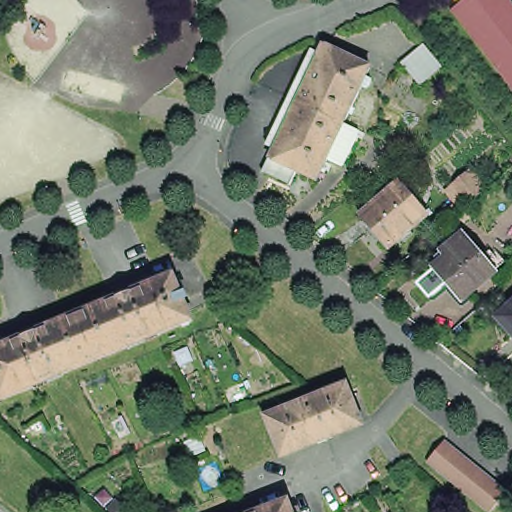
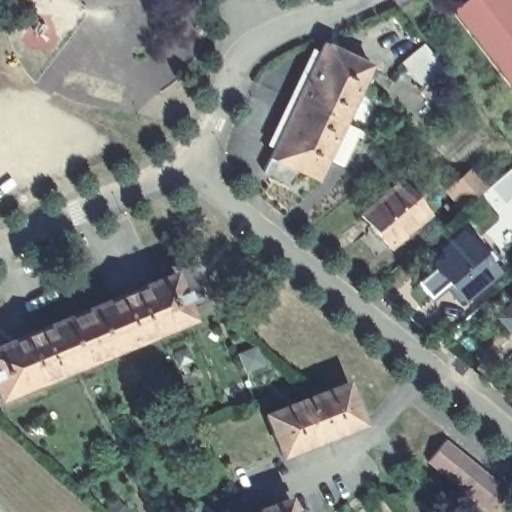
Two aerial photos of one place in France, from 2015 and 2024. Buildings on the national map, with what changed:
unchanged [(451,11),(465,0),(512,0),(512,88),(512,89),(451,11)]
unchanged [(261,170),(267,155),(293,99),(319,42),(366,64),(340,120),(354,127),(340,159),(326,152),(315,177),(295,169),(289,182),(261,170)]
unchanged [(412,54),(423,44),(442,66),(431,75),(419,85),(400,63),(412,54)]
unchanged [(487,187),(466,201),(449,180),(473,165),(487,187)]
unchanged [(430,216),(390,250),(362,217),(403,183),(430,216)]
unchanged [(504,270),(474,295),(449,265),(461,255),(456,248),(474,233),(504,270)]
unchanged [(197,318),(4,399),(0,389),(0,347),(177,272),(197,318)]
unchanged [(512,306),(512,354),(488,327),(512,306)]
unchanged [(368,421),(289,453),(273,413),(351,381),(368,421)]
unchanged [(490,512),(429,463),(449,440),(512,489),(494,512),(490,512)]
unchanged [(247,512),(284,497),(290,512),(247,512)]

